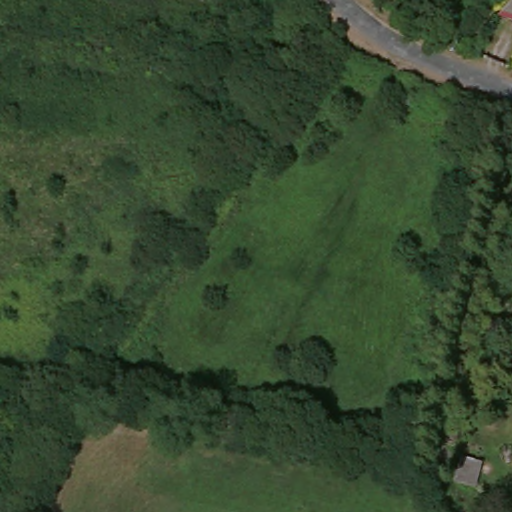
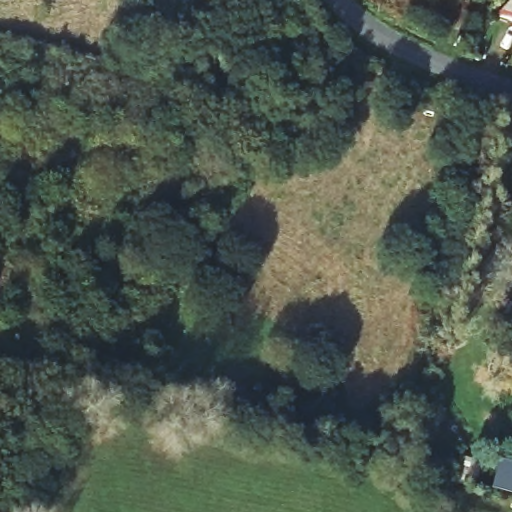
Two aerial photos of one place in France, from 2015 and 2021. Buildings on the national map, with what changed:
unchanged [(495,24),(512,8),(512,30),(495,24)]
new [(493,457),(512,462),(512,490),(486,484),(493,457)]

